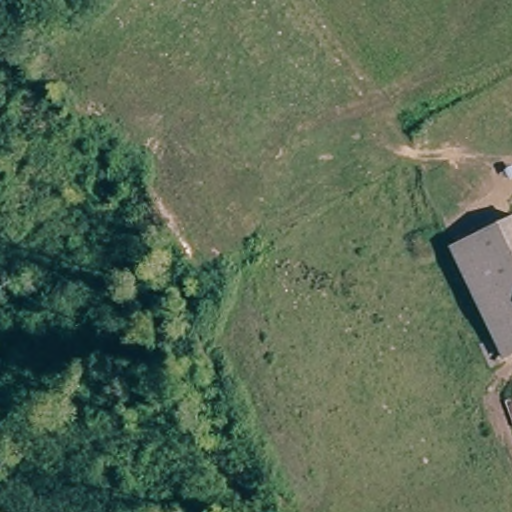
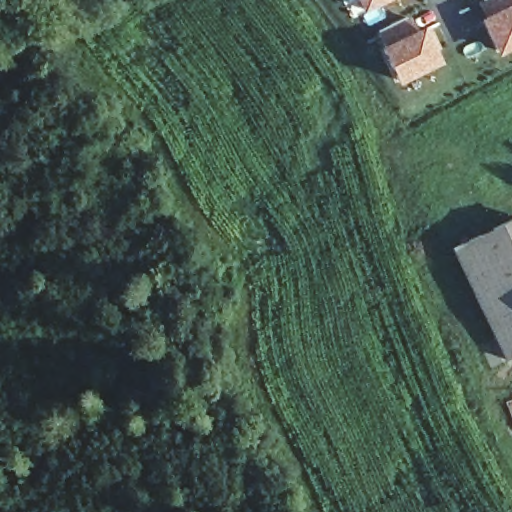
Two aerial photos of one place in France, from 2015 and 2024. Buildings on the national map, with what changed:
new [(358,0),(381,0),(363,9),(358,0)]
new [(499,51),(485,22),(492,18),(483,1),(484,0),(512,0),(512,45),(499,51)]
new [(416,36),(421,33),(434,61),(399,80),(383,49),(388,46),(379,31),(407,19),(416,36)]
unchanged [(467,262),(512,233),(512,357),(494,327),(458,268),(467,262)]

